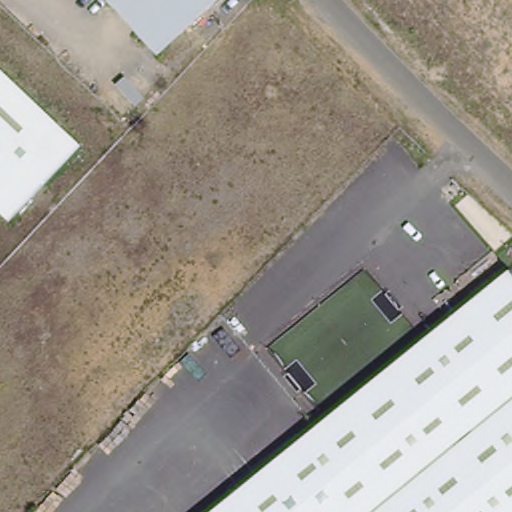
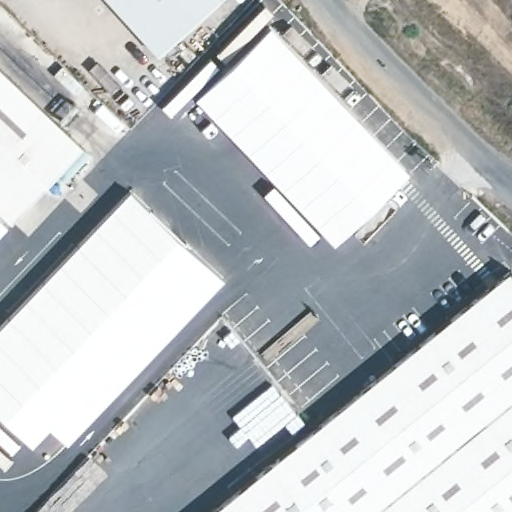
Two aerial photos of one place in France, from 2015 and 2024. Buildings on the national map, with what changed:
unchanged [(107,0),(221,0),(159,57),(107,0)]
new [(250,43),(268,26),(270,23),(299,53),(410,173),(335,246),(321,233),(274,182),(194,98),(250,43)]
unchanged [(10,226),(0,216),(0,67),(86,149),(10,226)]
new [(224,279),(114,396),(67,444),(48,427),(31,444),(4,420),(0,416),(0,324),(131,187),(224,279)]
new [(0,231),(0,217),(7,224),(0,231)]
unchanged [(508,269),(512,275),(512,512),(206,512),(508,269)]

